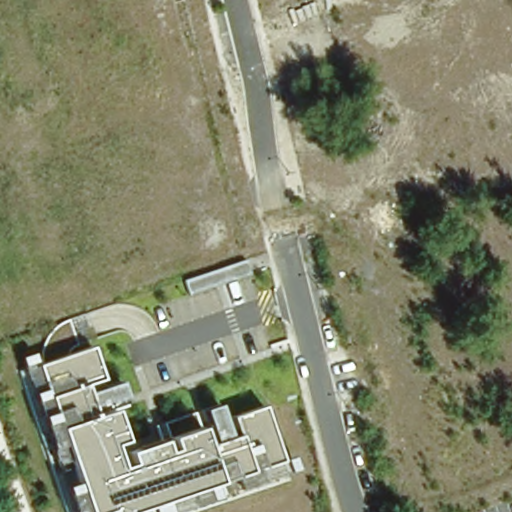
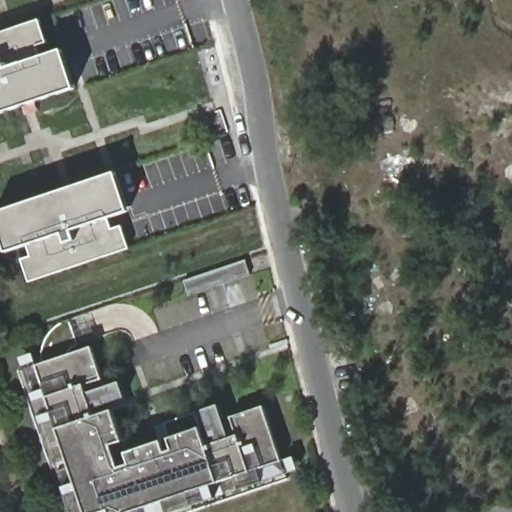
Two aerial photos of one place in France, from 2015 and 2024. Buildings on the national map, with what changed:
new [(0,113),(0,33),(39,21),(49,53),(62,49),(75,88),(0,113)]
new [(38,277),(29,248),(7,255),(0,235),(0,212),(105,179),(129,249),(38,277)]
new [(246,260),(251,275),(190,295),(184,280),(246,260)]
unchanged [(139,512),(111,512),(110,510),(105,512),(89,512),(37,367),(41,356),(44,346),(51,335),(59,325),(71,320),(81,351),(92,348),(103,379),(86,385),(89,394),(124,383),(127,398),(94,409),(95,417),(114,411),(125,442),(113,447),(119,469),(132,464),(128,453),(162,441),(167,454),(176,450),(171,439),(203,428),(208,446),(215,443),(204,411),(220,406),(230,438),(239,436),(232,417),(265,407),(284,461),(139,512)]

